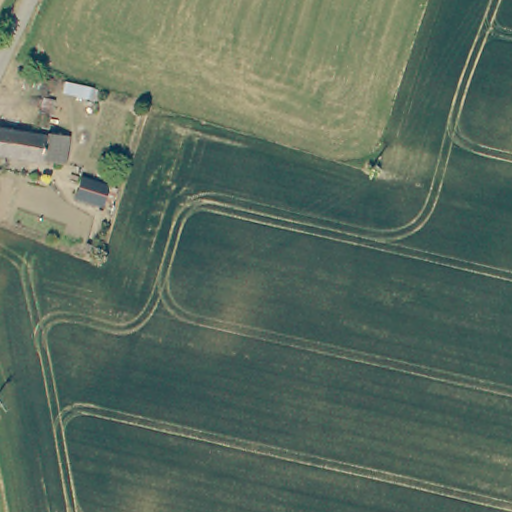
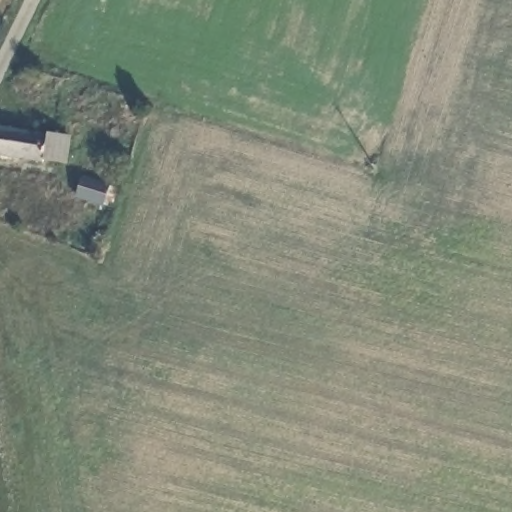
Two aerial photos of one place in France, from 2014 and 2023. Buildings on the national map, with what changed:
unchanged [(70,138),(66,162),(45,160),(45,164),(0,157),(0,127),(70,138)]
unchanged [(80,178),(105,188),(99,205),(73,195),(80,178)]

